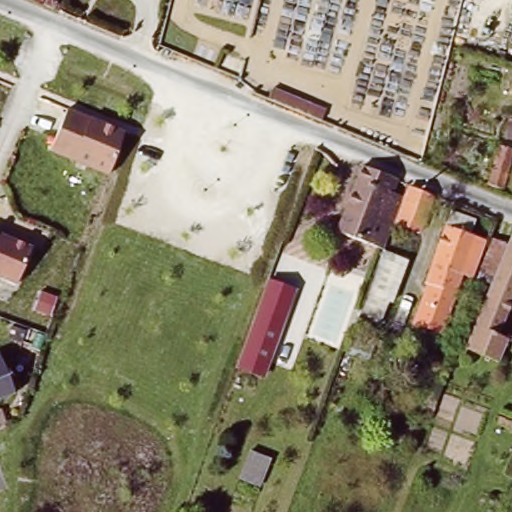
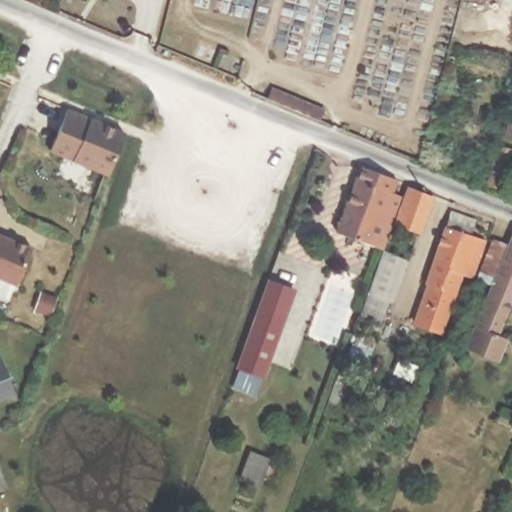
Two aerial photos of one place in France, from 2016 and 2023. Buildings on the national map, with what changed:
unchanged [(320,118),(303,111),(266,96),(270,85),(307,100),(324,107),(320,118)]
unchanged [(90,116),(125,130),(108,175),(73,161),(50,151),(66,108),(90,116)]
unchanged [(512,124),(512,139),(508,138),(512,124)]
unchanged [(502,145),(512,148),(512,164),(505,188),(491,185),(502,145)]
unchanged [(360,165),(395,178),(391,191),(402,196),(382,250),(335,230),(360,165)]
unchanged [(408,186),(431,195),(418,232),(395,223),(408,186)]
unchanged [(450,220),(455,207),(479,215),(474,229),(489,234),(475,272),(465,268),(458,288),(433,279),(430,277),(450,220)]
unchanged [(15,284),(0,278),(0,233),(30,245),(15,284)]
unchanged [(500,272),(485,266),(498,233),(512,239),(512,309),(503,330),(512,333),(512,337),(504,357),(470,343),(480,320),(500,272)]
unchanged [(377,266),(383,251),(406,260),(401,274),(391,301),(388,300),(380,322),(360,315),(368,293),(377,266)]
unchanged [(270,278),(297,289),(262,379),(235,366),(270,278)]
unchanged [(433,279),(458,288),(445,326),(420,317),(433,279)]
unchanged [(352,348),(370,354),(367,364),(348,358),(352,348)]
unchanged [(0,399),(0,359),(13,394),(0,399)]

